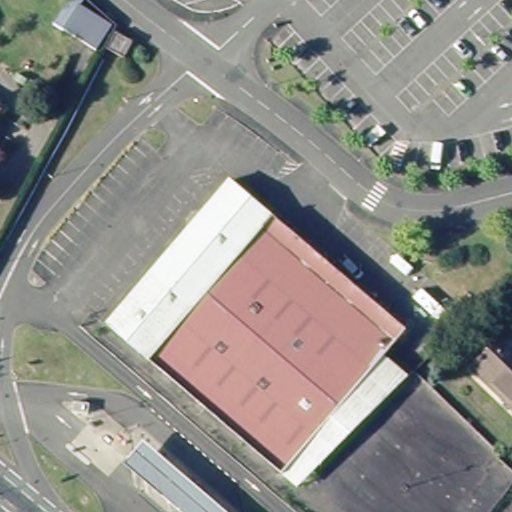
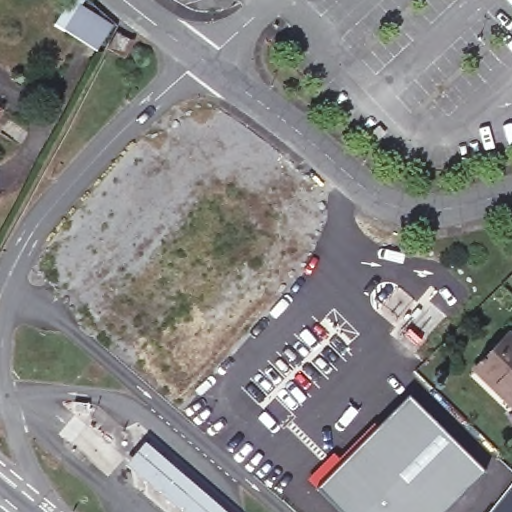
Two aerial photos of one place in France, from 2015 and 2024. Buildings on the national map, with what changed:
unchanged [(111,16),(95,41),(64,21),(76,0),(87,0),(111,16)]
unchanged [(127,31),(119,49),(102,41),(112,22),(127,31)]
demolished [(270,217),(405,331),(382,358),(281,478),(105,330),(232,182),(270,217)]
unchanged [(502,402),(471,372),(478,366),(475,363),(482,357),(485,360),(508,336),(512,340),(512,411),(502,402)]
new [(373,423),(377,428),(408,396),(485,472),(446,512),(342,512),(318,488),(308,481),(333,453),(340,457),(373,423)]
unchanged [(166,452),(215,493),(236,512),(190,512),(147,475),(128,459),(147,436),(166,452)]
new [(489,512),(512,484),(512,512),(489,512)]

